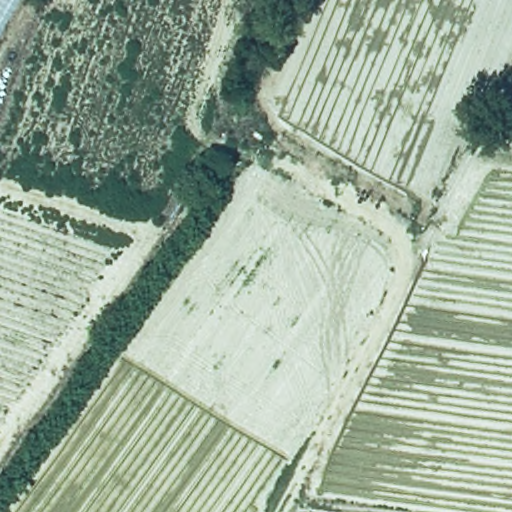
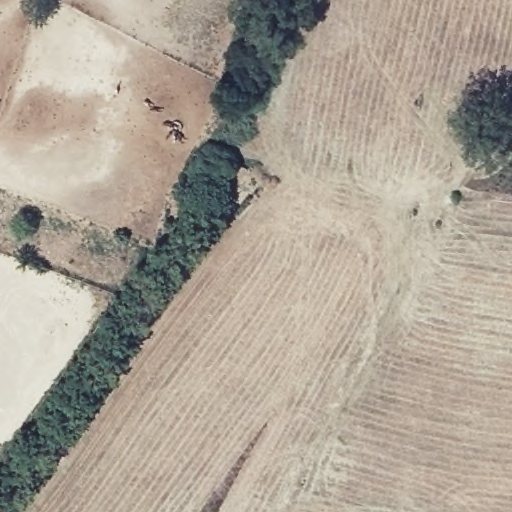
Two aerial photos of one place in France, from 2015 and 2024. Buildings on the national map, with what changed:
unchanged [(230,167),(206,207),(201,205),(180,191),(204,152),(217,160),(230,167)]

